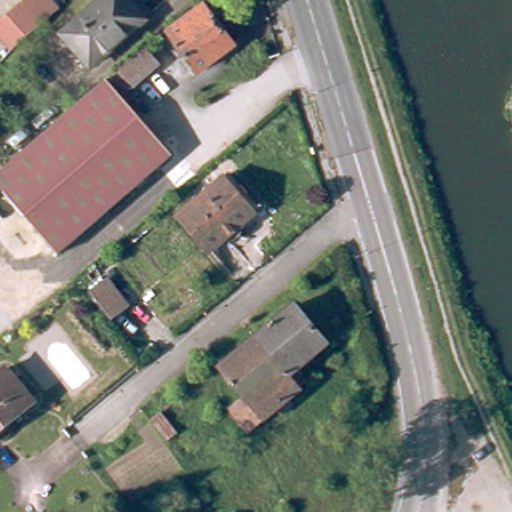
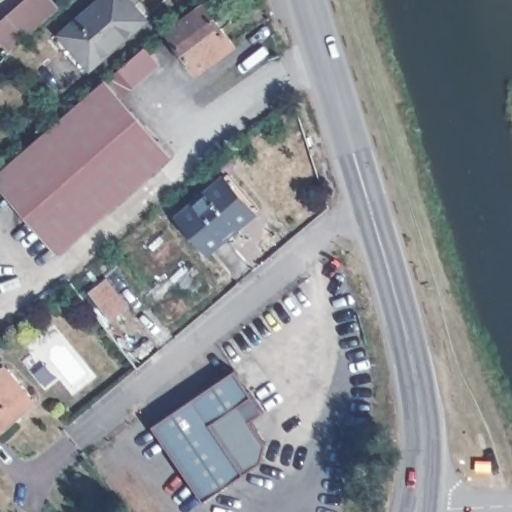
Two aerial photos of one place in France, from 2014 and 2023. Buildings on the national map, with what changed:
unchanged [(0,26),(29,0),(51,0),(61,11),(15,51),(0,35),(0,26)]
unchanged [(67,35),(106,0),(128,0),(145,19),(93,64),(67,35)]
unchanged [(205,4),(238,46),(200,75),(167,33),(205,4)]
unchanged [(165,60),(128,92),(114,76),(151,44),(165,60)]
unchanged [(175,154),(123,199),(78,144),(44,170),(27,150),(110,77),(175,154)]
unchanged [(78,144),(123,199),(62,252),(0,181),(0,172),(27,150),(44,170),(78,144)]
unchanged [(225,176),(257,213),(208,255),(177,217),(225,176)]
unchanged [(102,272),(110,284),(132,312),(115,326),(85,285),(102,272)]
demolished [(245,392),(222,362),(295,300),(328,340),(298,364),(307,375),(300,381),(302,384),(290,393),(296,401),(283,411),(278,404),(250,427),(230,405),(245,392)]
unchanged [(35,402),(0,431),(0,372),(5,367),(35,402)]
new [(204,500),(153,425),(235,370),(263,412),(250,420),(266,442),(260,461),(204,500)]

